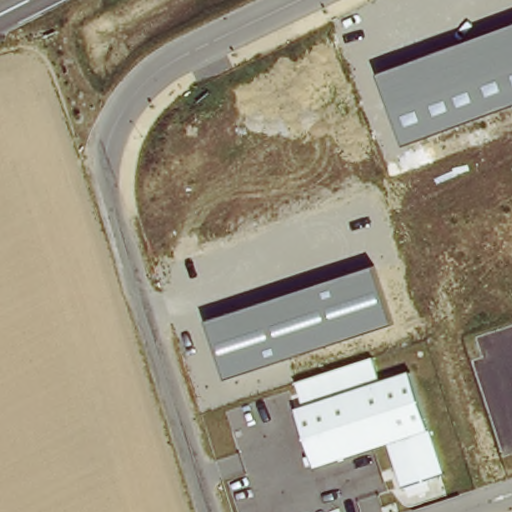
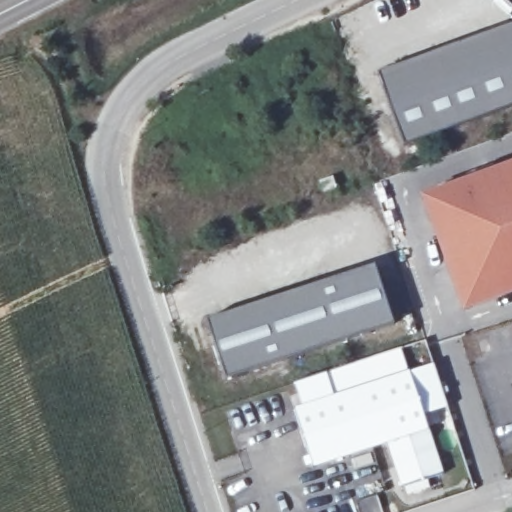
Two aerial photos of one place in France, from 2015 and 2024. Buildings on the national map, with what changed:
unchanged [(405,145),(379,73),(512,25),(512,107),(405,145)]
new [(462,312),(421,195),(512,162),(512,294),(462,312)]
unchanged [(207,320),(374,266),(394,325),(227,379),(207,320)]
unchanged [(304,406),(296,382),(372,358),(381,380),(409,372),(445,473),(403,487),(388,443),(316,467),(295,408),(304,406)]

